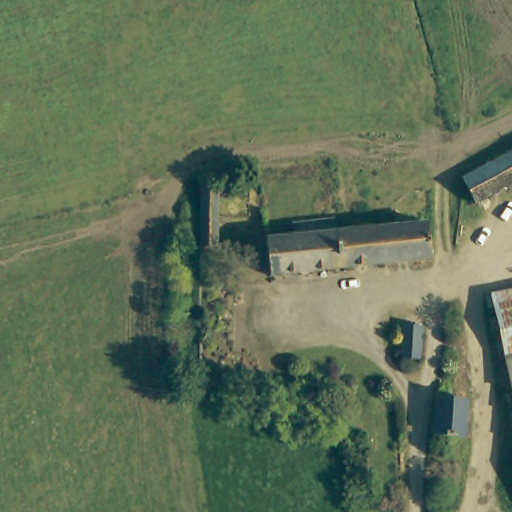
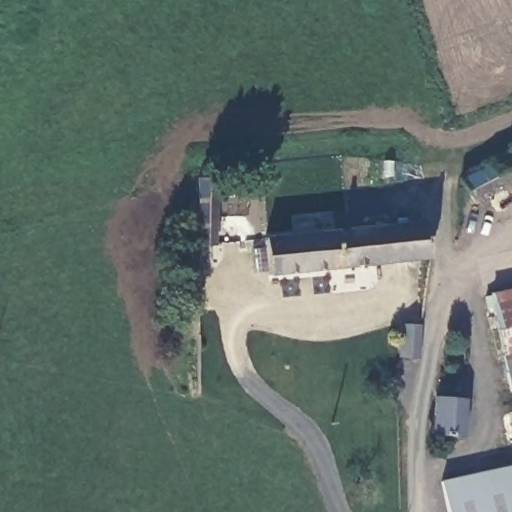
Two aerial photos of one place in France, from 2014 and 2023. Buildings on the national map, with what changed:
unchanged [(467,175),(512,149),(512,188),(484,205),(467,175)]
unchanged [(217,251),(197,251),(199,182),(220,182),(217,251)]
unchanged [(270,272),(267,237),(307,234),(306,221),(325,220),(335,219),(336,231),(407,225),(431,224),(431,258),(270,272)]
unchanged [(496,305),(512,301),(512,360),(507,361),(496,305)]
unchanged [(404,366),(405,337),(422,338),(421,366),(404,366)]
unchanged [(512,360),(512,384),(507,361),(512,360)]
unchanged [(460,393),(460,427),(450,429),(443,439),(434,437),(431,429),(426,429),(429,391),(460,393)]
new [(512,466),(512,512),(449,512),(442,481),(512,466)]

